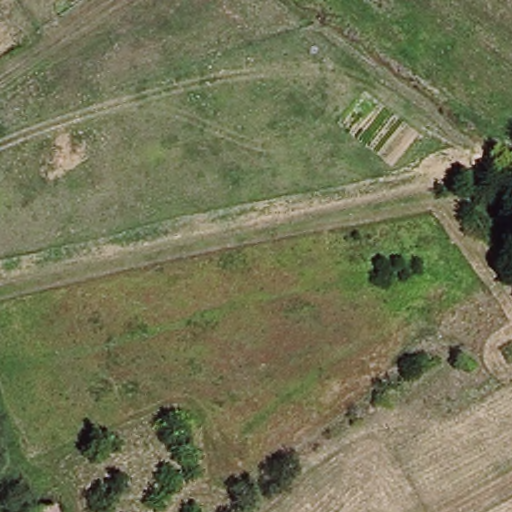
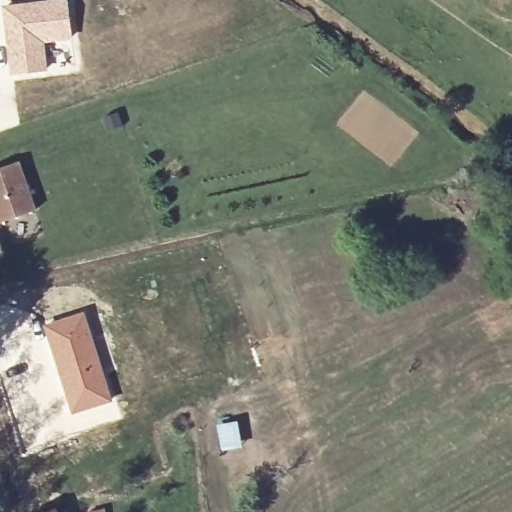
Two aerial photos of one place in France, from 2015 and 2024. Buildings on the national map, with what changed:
new [(52,0),(67,0),(73,39),(44,44),(46,71),(11,75),(2,8),(52,0)]
new [(37,217),(1,229),(0,227),(0,170),(20,164),(37,217)]
new [(85,310),(113,401),(71,415),(42,324),(85,310)]
unchanged [(68,512),(56,512),(68,509),(68,512)]

